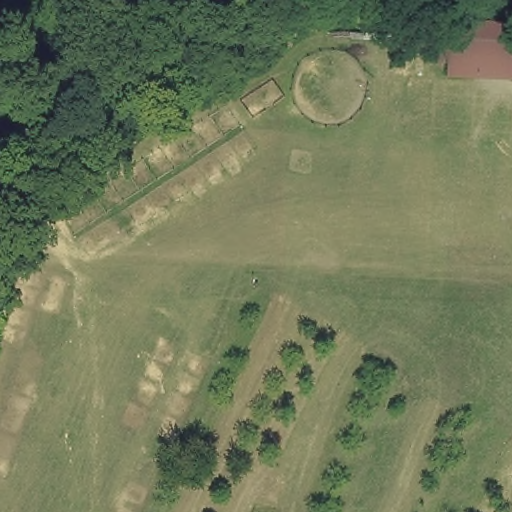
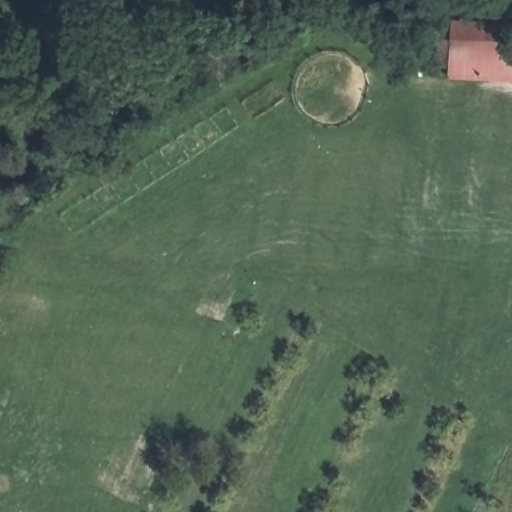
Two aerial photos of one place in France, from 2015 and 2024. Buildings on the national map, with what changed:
unchanged [(458,22),(512,23),(512,81),(456,82),(458,22)]

